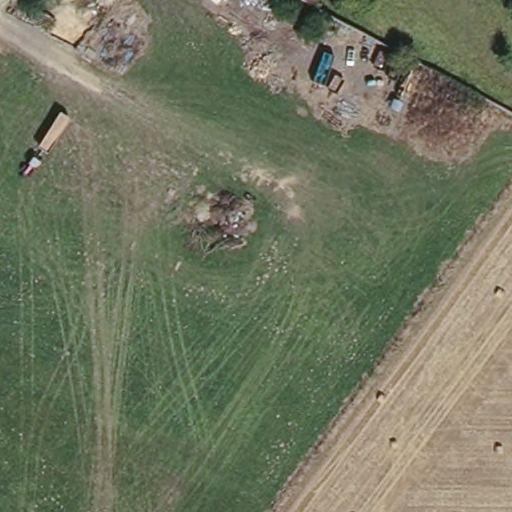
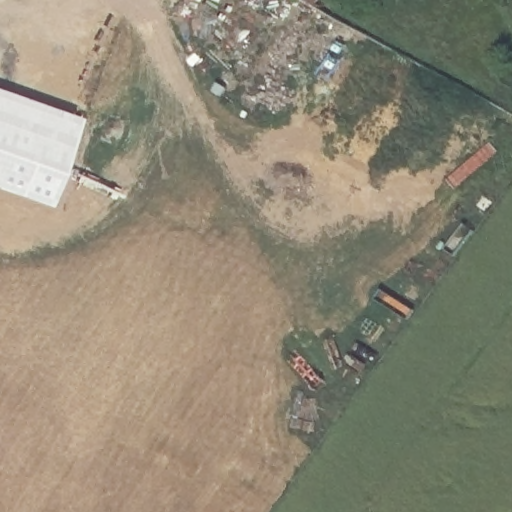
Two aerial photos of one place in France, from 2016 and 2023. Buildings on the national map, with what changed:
unchanged [(300,0),(320,0),(315,9),(300,0)]
new [(51,206),(0,188),(0,98),(77,125),(51,206)]

